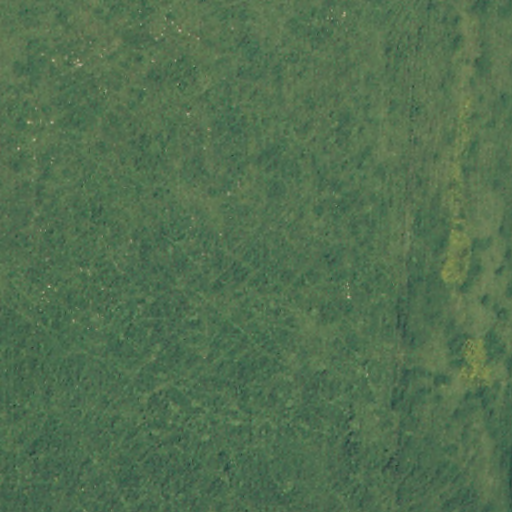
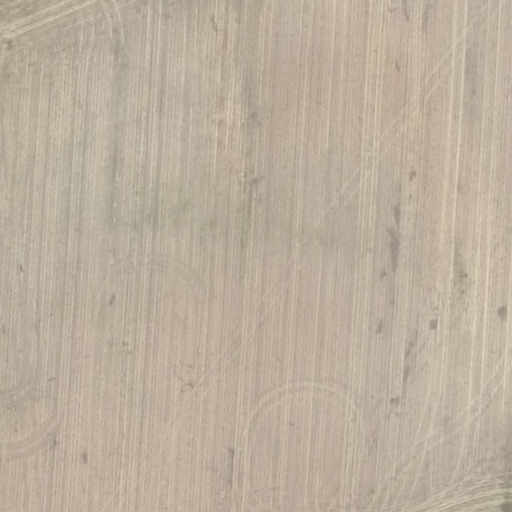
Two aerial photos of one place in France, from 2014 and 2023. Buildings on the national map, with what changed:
[]

